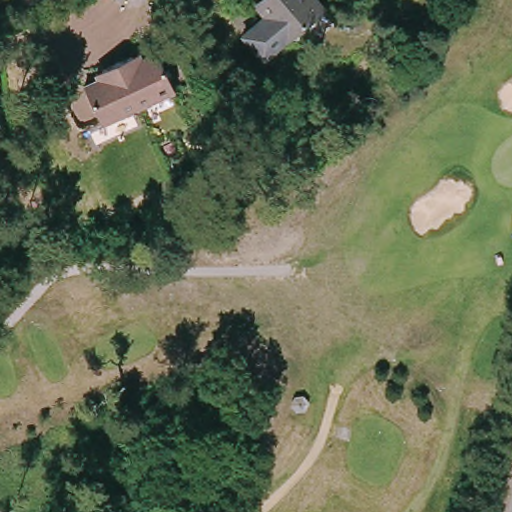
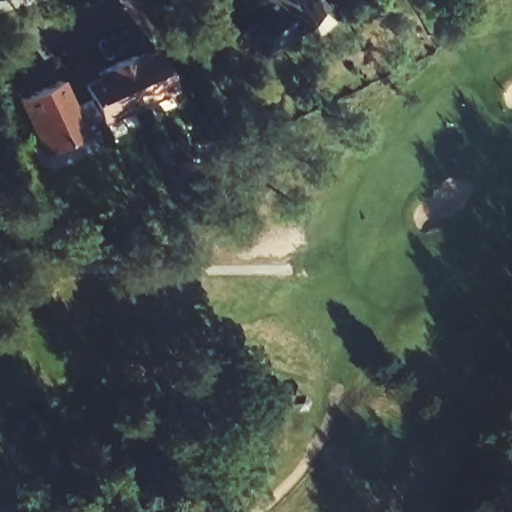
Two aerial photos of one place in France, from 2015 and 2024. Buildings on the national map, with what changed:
unchanged [(268,6),(263,0),(323,0),(287,29),(264,49),(245,25),(268,6)]
unchanged [(171,87),(154,94),(156,101),(143,107),(140,102),(129,107),(131,111),(117,118),(115,113),(98,121),(80,84),(97,76),(94,68),(130,51),(134,57),(153,48),(171,87)]
new [(73,104),(87,97),(98,121),(84,126),(88,135),(44,157),(17,101),(61,81),(73,104)]

